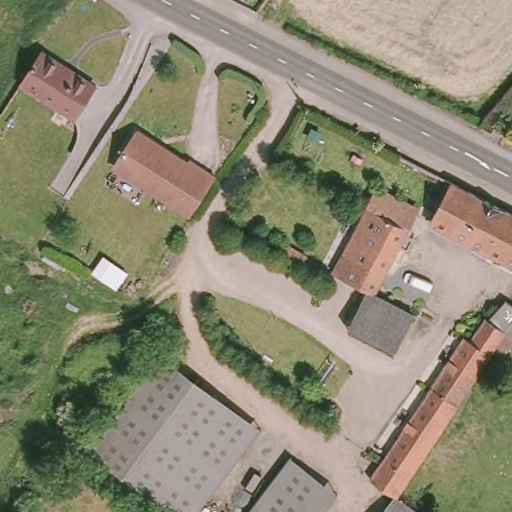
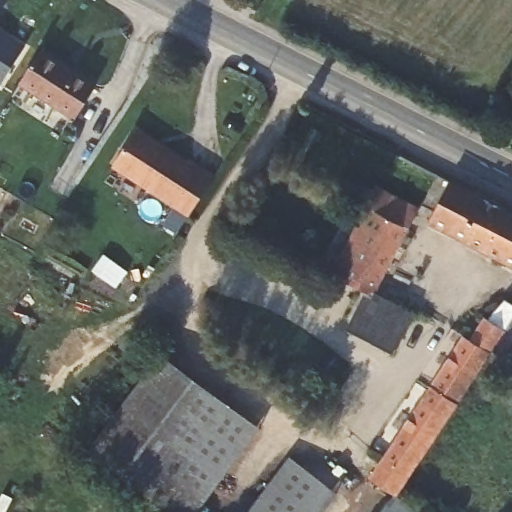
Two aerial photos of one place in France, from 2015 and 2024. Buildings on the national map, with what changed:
new [(26,44),(0,86),(0,27),(26,44)]
unchanged [(41,49),(62,63),(60,66),(73,74),(74,71),(92,82),(93,88),(74,119),(19,84),(41,49)]
unchanged [(113,164),(135,130),(185,163),(188,158),(214,175),(189,214),(113,164)]
unchanged [(452,182),(512,213),(512,263),(431,222),(452,182)]
unchanged [(338,269),(337,268),(371,202),(412,223),(378,288),(373,286),(338,269)]
unchanged [(280,258),(286,246),(304,256),(298,267),(280,258)]
unchanged [(418,308),(398,348),(353,325),(373,286),(378,288),(418,308)]
unchanged [(474,382),(400,495),(374,479),(469,336),(474,340),(489,318),(492,319),(510,300),(512,301),(512,323),(508,330),(474,382)]
unchanged [(474,382),(508,330),(512,323),(512,348),(486,389),(474,382)]
unchanged [(169,512),(87,451),(159,353),(260,428),(196,512),(169,512)]
unchanged [(323,512),(249,512),(294,451),(341,487),(323,512)]
unchanged [(387,512),(400,495),(424,512),(387,512)]

